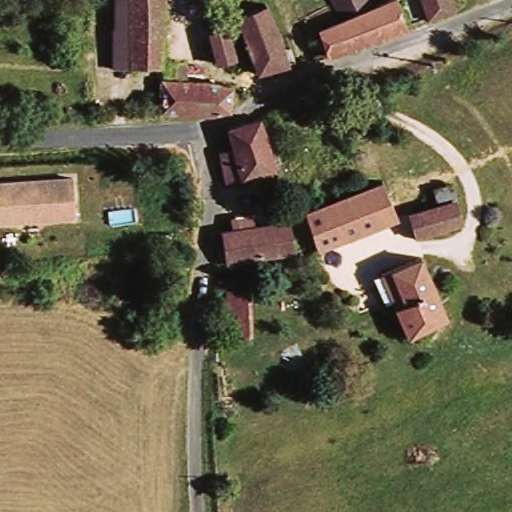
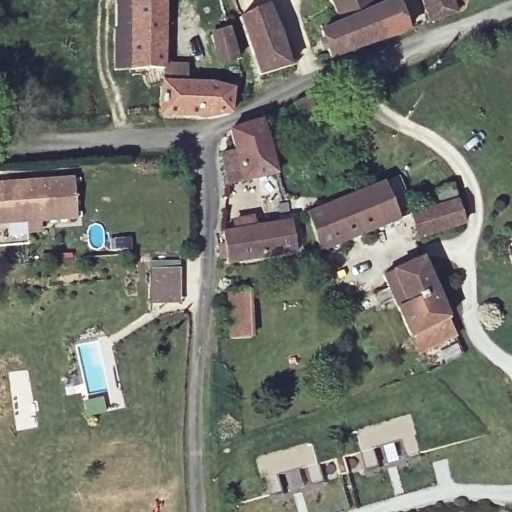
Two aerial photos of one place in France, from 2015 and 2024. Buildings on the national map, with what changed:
unchanged [(110,72),(108,0),(125,0),(126,70),(110,72)]
unchanged [(126,70),(125,0),(159,0),(160,69),(126,70)]
unchanged [(344,22),(374,9),(393,0),(397,0),(408,28),(329,57),(319,35),(344,22)]
unchanged [(333,2),(332,0),(369,0),(374,9),(344,22),(333,2)]
unchanged [(452,0),(456,12),(433,20),(425,0),(452,0)]
unchanged [(266,2),(279,35),(287,32),(296,61),(260,72),(238,14),(266,2)]
unchanged [(198,44),(218,36),(231,66),(211,74),(198,44)]
unchanged [(226,112),(161,114),(161,81),(227,88),(226,112)]
unchanged [(304,124),(296,107),(319,94),(328,114),(304,124)]
unchanged [(228,149),(224,128),(256,118),(274,170),(233,179),(221,181),(216,151),(228,149)]
unchanged [(80,213),(0,216),(0,176),(78,172),(80,213)]
unchanged [(432,189),(448,182),(463,220),(416,236),(407,213),(437,202),(432,189)]
unchanged [(307,217),(326,209),(379,186),(394,222),(322,253),(307,217)]
unchanged [(223,244),(222,229),(289,219),(296,252),(214,261),(214,244),(223,244)]
new [(151,306),(148,263),(179,262),(181,305),(151,306)]
unchanged [(419,262),(449,322),(412,340),(383,280),(419,262)]
unchanged [(248,284),(250,330),(231,331),(230,284),(248,284)]

